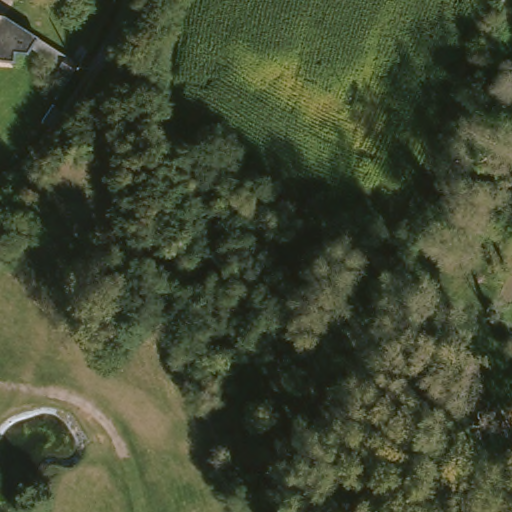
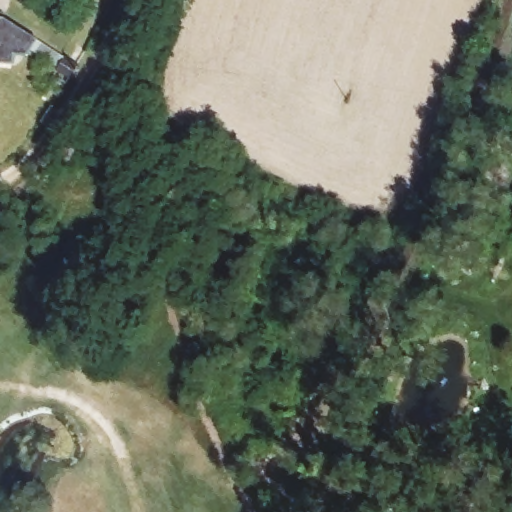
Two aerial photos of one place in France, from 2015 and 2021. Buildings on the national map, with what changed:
unchanged [(0,48),(0,27),(4,29),(1,48),(0,48)]
unchanged [(69,76),(52,65),(59,54),(77,64),(69,76)]

